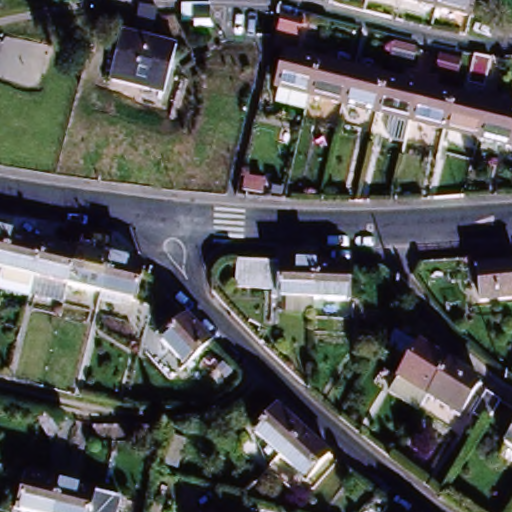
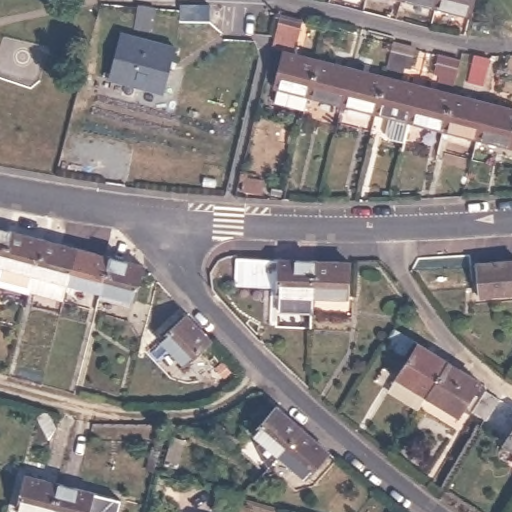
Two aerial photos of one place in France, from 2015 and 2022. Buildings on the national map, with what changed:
unchanged [(405,0),(436,0),(434,8),(405,0)]
unchanged [(434,8),(436,0),(473,0),(468,17),(434,8)]
unchanged [(182,19),(184,10),(185,2),(214,7),(213,16),(212,24),(182,19)]
unchanged [(277,89),(286,53),(273,50),(278,27),(281,18),(303,24),(299,41),(296,40),(292,55),(320,62),(352,70),(343,106),(311,97),(307,111),(273,102),(277,89)]
unchanged [(177,49),(165,95),(111,81),(122,35),(177,49)]
unchanged [(411,123),(407,140),(391,135),(387,129),(391,117),(377,114),(343,106),(352,70),(387,79),(395,47),(415,52),(410,71),(402,69),(399,82),(420,87),(411,123)]
unchanged [(445,132),(411,123),(420,87),(437,92),(441,79),(435,77),(440,57),(462,62),(453,96),(487,104),(478,140),(445,132)]
unchanged [(489,63),(482,90),(465,85),(472,59),(489,63)]
unchanged [(512,110),(512,149),(478,140),(487,104),(512,110)]
unchanged [(31,297),(0,289),(0,278),(3,268),(0,267),(0,230),(12,233),(45,242),(77,250),(111,259),(102,294),(69,285),(64,304),(32,295),(31,297)]
unchanged [(145,268),(142,276),(136,302),(102,294),(111,259),(145,268)]
unchanged [(283,292),(242,290),(243,260),(285,262),(283,292)]
unchanged [(286,297),(282,297),(283,292),(285,262),(320,262),(356,264),(355,301),(354,317),(318,315),(318,312),(285,311),(286,297)]
unchanged [(512,263),(512,299),(481,302),(477,266),(512,263)]
unchanged [(202,332),(211,342),(185,368),(161,342),(187,317),(202,332)]
unchanged [(393,373),(415,340),(446,360),(425,393),(393,373)]
unchanged [(446,360),(476,378),(456,412),(425,393),(446,360)]
unchanged [(485,417),(471,409),(484,387),(498,396),(485,417)]
unchanged [(252,432),(276,407),(302,431),(280,457),(252,432)]
unchanged [(302,431),(330,453),(307,481),(280,457),(302,431)]
unchanged [(508,444),(512,438),(512,447),(508,444)]
unchanged [(56,512),(21,512),(20,512),(29,477),(62,486),(56,512)]
unchanged [(96,494),(91,512),(56,512),(62,486),(96,494)]

